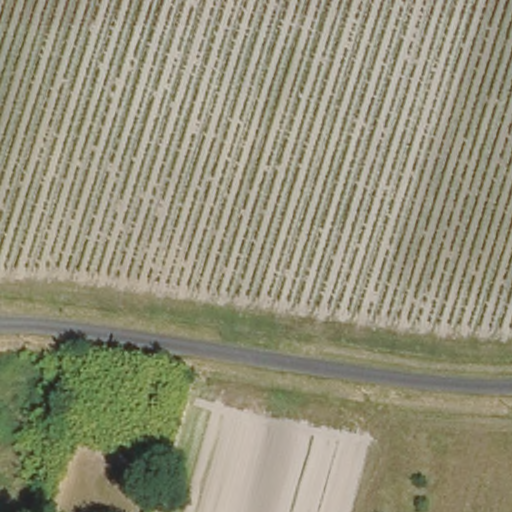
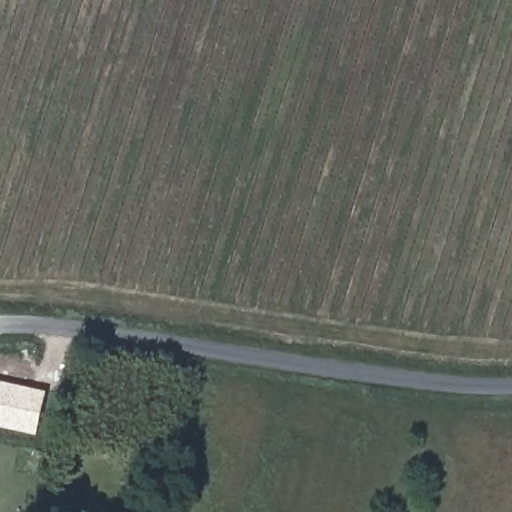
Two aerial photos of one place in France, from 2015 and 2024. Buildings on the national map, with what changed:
new [(47,392),(36,436),(0,428),(0,381),(47,392)]

